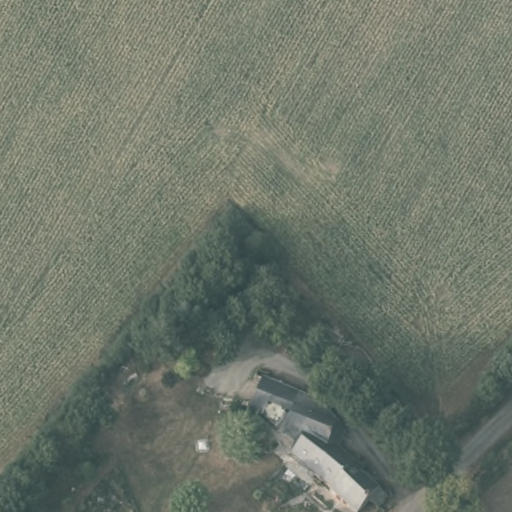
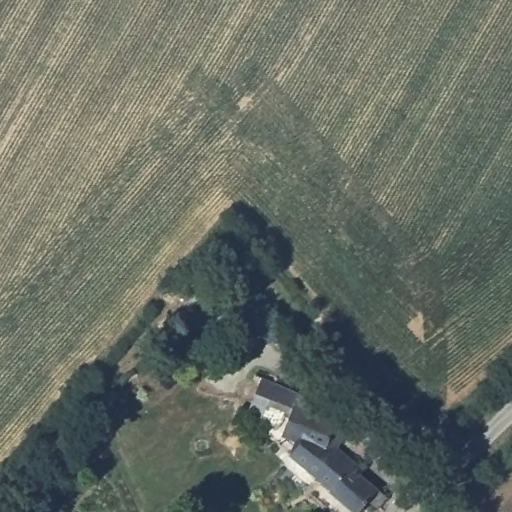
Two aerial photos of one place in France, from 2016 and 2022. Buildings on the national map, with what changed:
unchanged [(275,430),(250,408),(260,379),(298,392),(283,433),(275,430)]
unchanged [(324,448),(283,433),(298,392),(322,400),(335,418),(324,448)]
unchanged [(324,448),(335,418),(344,429),(338,445),(338,444),(315,471),(292,452),(294,449),(281,438),(283,433),(324,448)]
unchanged [(379,505),(367,497),(356,511),(317,480),(321,476),(315,471),(338,444),(338,445),(364,464),(360,471),(389,493),(379,505)]

